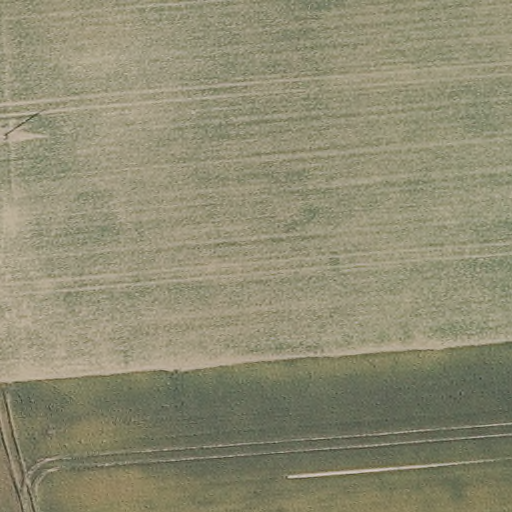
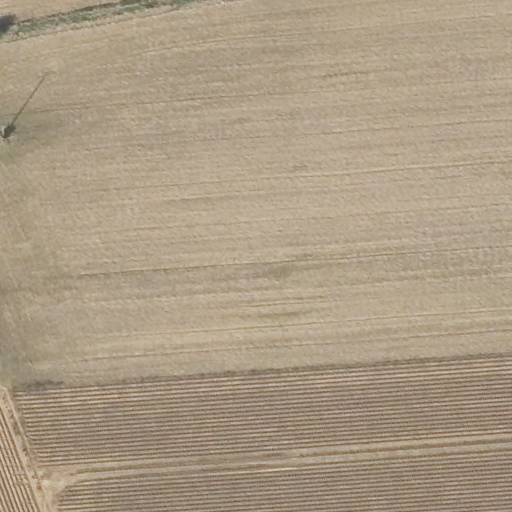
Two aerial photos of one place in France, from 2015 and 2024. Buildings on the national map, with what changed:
[]

